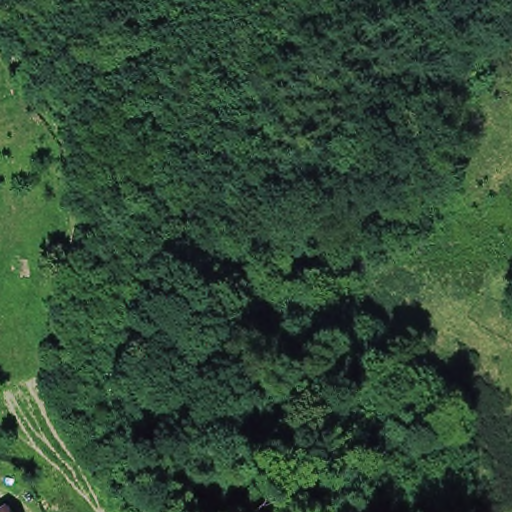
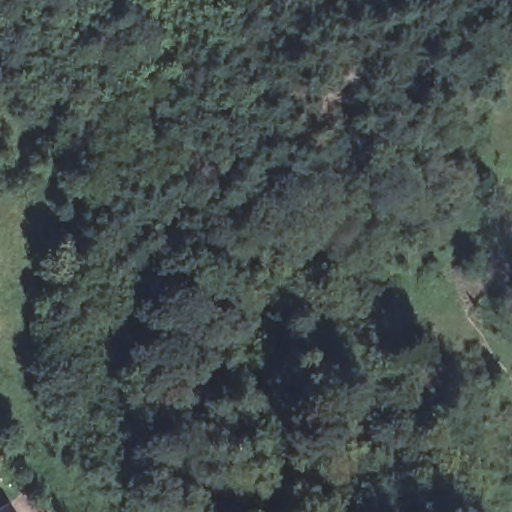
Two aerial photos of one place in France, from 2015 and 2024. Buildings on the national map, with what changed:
unchanged [(15,512),(0,512),(0,508),(10,502),(15,512)]

